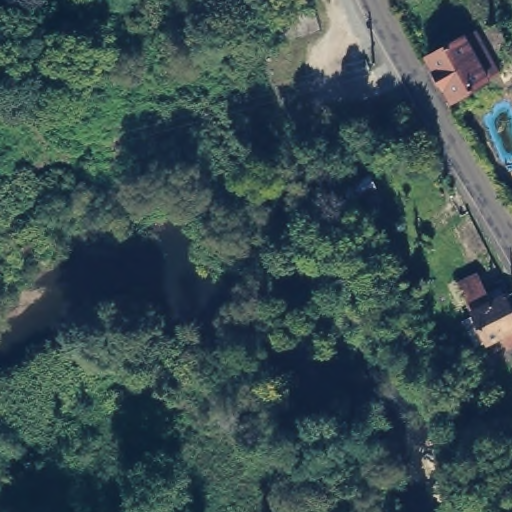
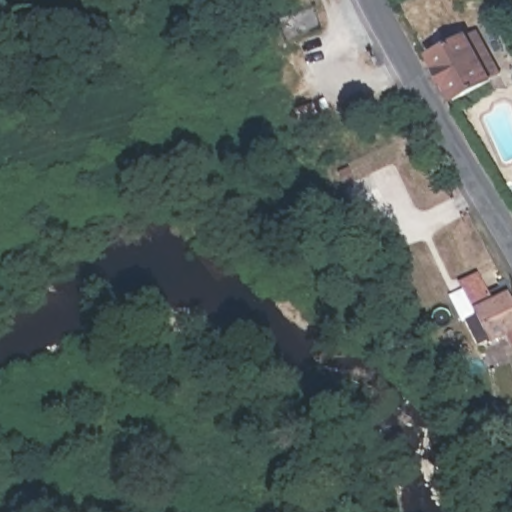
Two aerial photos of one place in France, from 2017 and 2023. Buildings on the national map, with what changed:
unchanged [(434,80),(439,77),(429,57),(475,32),(499,76),(452,102),(442,83),(437,86),(434,80)]
unchanged [(377,188),(351,201),(344,188),(337,174),(348,169),(355,183),(371,175),(377,188)]
unchanged [(512,340),(506,327),(489,335),(462,278),(480,271),(488,288),(502,282),(505,291),(512,304),(512,340)]

